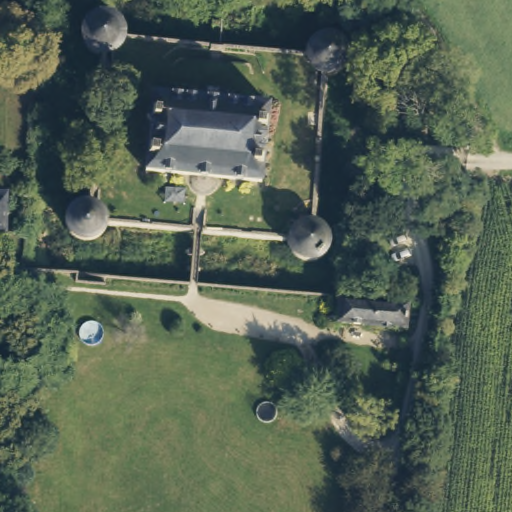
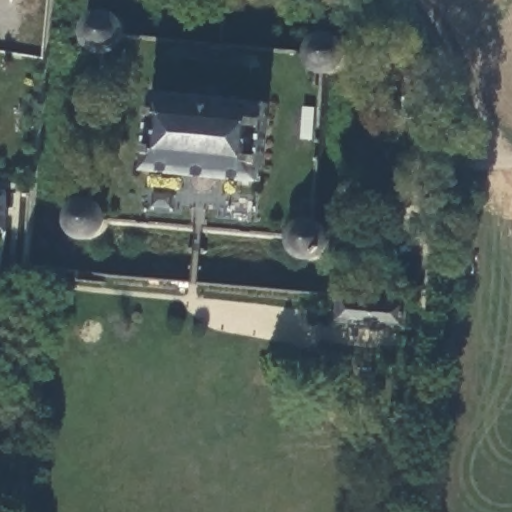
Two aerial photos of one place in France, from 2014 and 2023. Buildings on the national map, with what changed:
unchanged [(110,13),(122,17),(129,26),(130,35),(125,46),(118,50),(110,52),(94,46),(90,38),(91,25),(97,18),(110,13)]
unchanged [(314,41),(326,35),(337,37),(346,46),(348,55),(345,66),(336,71),(329,73),(318,71),(312,64),(309,57),(308,50),(314,41)]
unchanged [(268,104),(261,181),(147,170),(155,93),(268,104)]
unchanged [(7,191),(8,230),(0,230),(0,191),(7,191)]
unchanged [(100,203),(106,212),(107,222),(104,231),(97,237),(86,238),(76,234),(70,226),(69,216),(71,208),(77,203),(86,200),(93,200),(100,203)]
unchanged [(328,226),(335,236),(333,249),(324,258),(308,259),(300,253),(296,245),(295,238),(300,227),(308,221),(319,220),(328,226)]
unchanged [(408,301),(407,326),(337,319),(340,295),(364,297),(408,301)]

